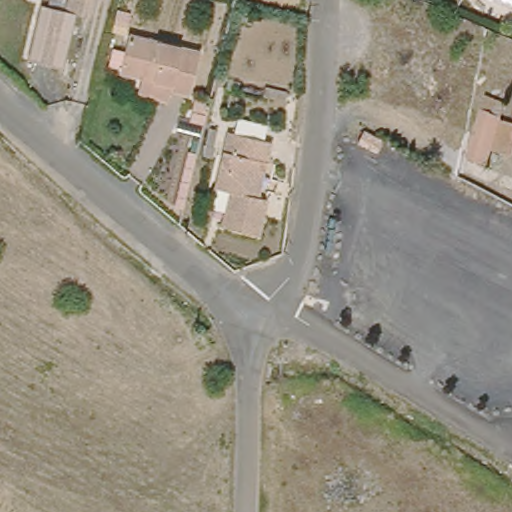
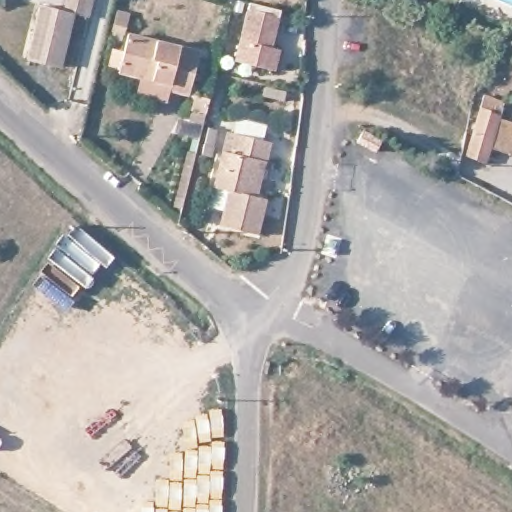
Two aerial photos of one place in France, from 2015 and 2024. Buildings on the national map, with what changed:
unchanged [(40,8),(68,15),(71,0),(92,0),(90,13),(88,21),(73,17),(61,70),(27,62),(40,8)]
new [(281,11),(274,50),(281,51),(276,73),(235,63),(250,4),(281,11)]
unchanged [(138,101),(142,85),(118,79),(130,34),(202,50),(188,103),(171,98),(168,109),(138,101)]
unchanged [(504,156),(487,148),(481,162),(462,153),(488,89),(508,96),(499,119),(512,125),(512,136),(504,156)]
unchanged [(190,117),(195,97),(207,100),(203,120),(190,117)]
unchanged [(267,203),(257,241),(219,232),(221,223),(228,194),(211,189),(221,155),(230,156),(233,140),(269,149),(264,170),(259,168),(252,198),(267,203)]

